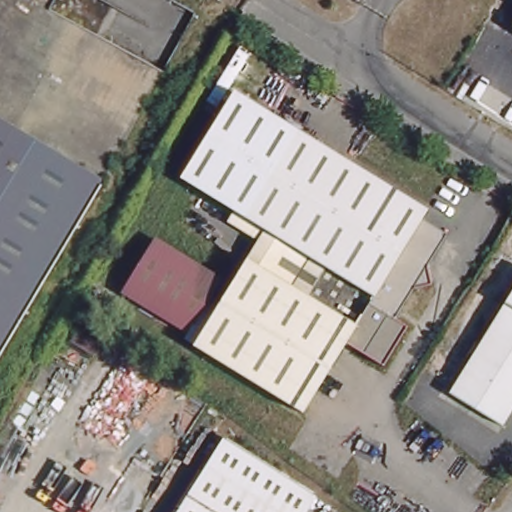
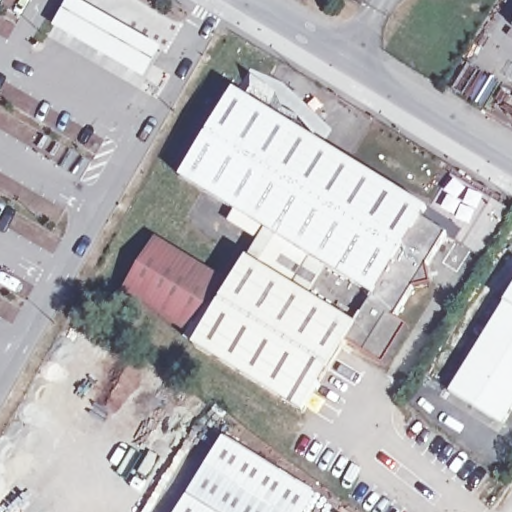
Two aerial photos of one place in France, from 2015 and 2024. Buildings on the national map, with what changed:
new [(70,0),(160,48),(143,79),(55,29),(70,0)]
unchanged [(178,173),(229,89),(422,207),(417,215),(440,229),(423,258),(427,277),(410,280),(389,314),(400,321),(377,358),(342,337),(336,347),(244,273),(238,270),(236,268),(245,254),(263,225),(178,173)]
demolished [(101,186),(0,353),(0,126),(101,186)]
unchanged [(185,328),(120,289),(152,237),(216,276),(185,328)]
unchanged [(238,270),(244,273),(336,347),(298,407),(191,341),(236,268),(238,270)]
unchanged [(451,392),(512,292),(512,409),(502,425),(451,392)]
unchanged [(296,512),(170,512),(219,434),(310,491),(296,512)]

